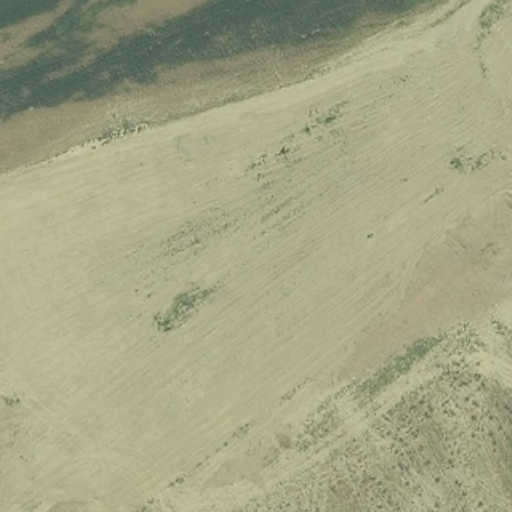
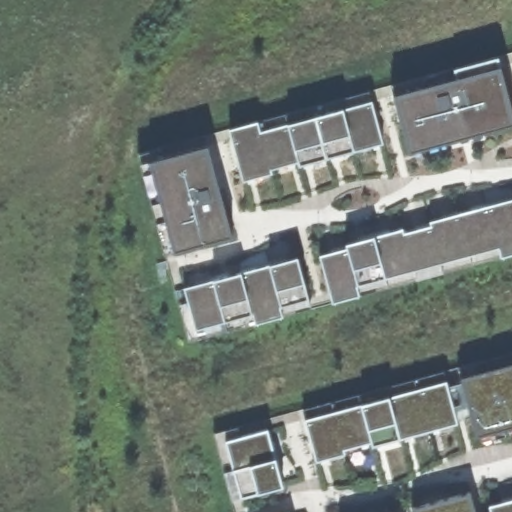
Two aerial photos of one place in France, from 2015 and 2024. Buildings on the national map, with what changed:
new [(512,52),(512,63),(500,66),(512,110),(512,124),(470,136),(470,140),(456,144),(454,140),(409,152),(393,95),(372,101),(383,143),(379,144),(380,148),(375,150),(373,146),(370,147),(371,153),(357,156),(356,150),(337,156),(337,160),(332,161),(330,157),(310,163),(310,167),(305,168),(304,165),(299,166),(297,162),(294,163),(295,167),(290,168),(288,164),(272,169),(272,180),(258,183),(256,177),(254,178),(254,182),(249,184),(247,180),(242,181),(232,139),(208,145),(212,161),(216,161),(220,173),(216,175),(232,236),(175,253),(185,287),(197,284),(196,280),(228,271),(230,275),(241,272),(241,268),(256,264),(257,267),(269,264),(269,260),(285,256),(286,260),(297,257),(309,299),(330,293),(320,255),(331,252),(331,248),(357,241),(357,236),(389,228),(390,232),(402,228),(404,232),(415,230),(414,225),(442,218),(442,213),(457,209),(459,213),(471,210),(471,206),(501,198),(502,201),(512,198),(512,254),(189,342),(138,154),(512,52)]
demolished [(425,104),(433,116),(421,126),(412,114),(425,104)]
demolished [(345,159),(355,177),(345,187),(332,168),(345,159)]
demolished [(80,202),(94,225),(85,233),(69,211),(80,202)]
demolished [(312,241),(323,259),(297,278),(284,262),(312,241)]
demolished [(174,334),(191,359),(182,369),(162,347),(174,334)]
new [(510,434),(507,428),(504,430),(505,436),(482,442),(480,436),(476,436),(460,377),(447,381),(457,423),(439,428),(439,432),(434,434),(432,430),(427,431),(429,438),(415,441),(412,435),(410,436),(411,440),(406,441),(404,438),(382,443),(383,447),(378,449),(377,445),(372,446),(371,442),(367,443),(368,447),(362,448),(361,445),(345,449),(345,460),(332,464),(329,458),(327,459),(327,463),(322,464),(321,460),(316,461),(305,419),(268,429),(271,442),(275,442),(284,473),(280,474),(283,486),(241,498),(245,512),(235,512),(214,434),(512,353),(512,433),(510,434)]
new [(470,492),(476,512),(414,512),(412,507),(470,492)]
new [(501,502),(501,498),(512,495),(512,512),(491,512),(489,505),(501,502)]
new [(398,512),(394,512),(397,511),(398,512)]

